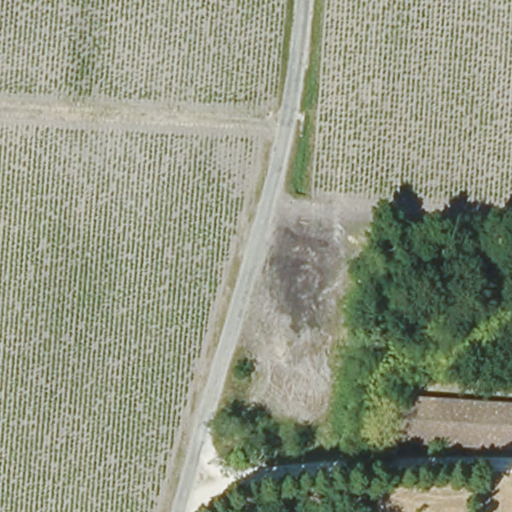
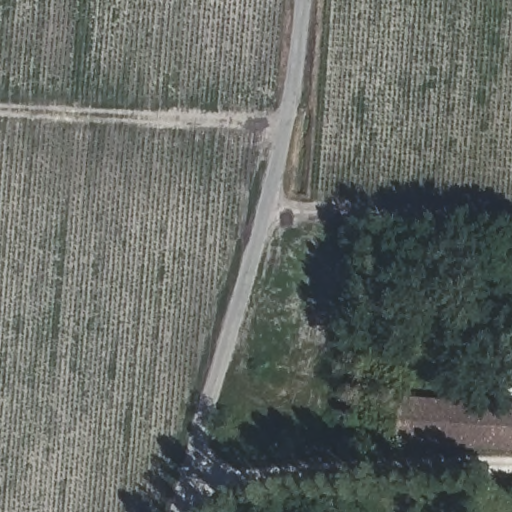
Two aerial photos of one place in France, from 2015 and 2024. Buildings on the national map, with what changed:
unchanged [(512,451),(399,444),(401,397),(512,404),(512,451)]

